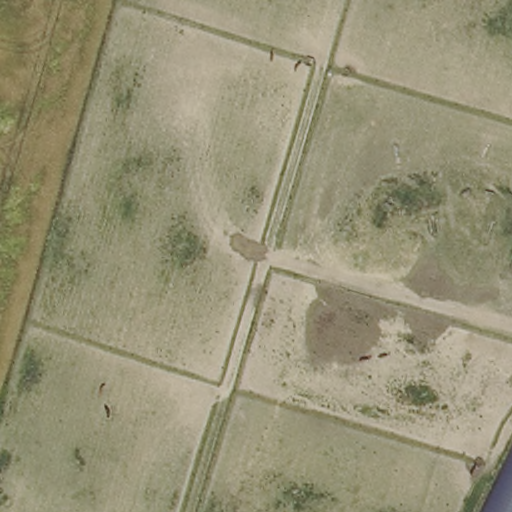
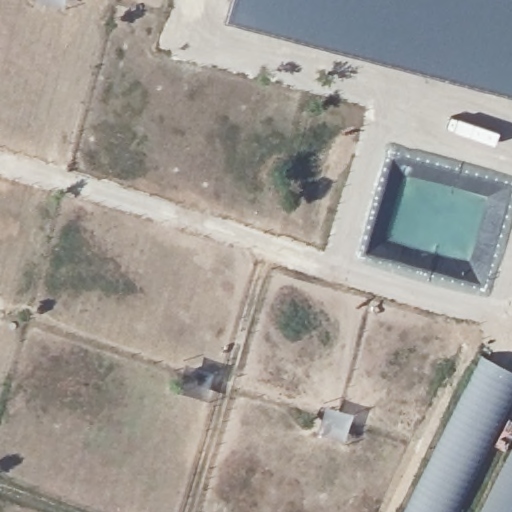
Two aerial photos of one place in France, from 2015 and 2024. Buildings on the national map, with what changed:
new [(231,0),(512,0),(512,97),(449,81),(226,20),(231,0)]
new [(405,512),(482,356),(512,371),(512,406),(460,512),(405,512)]
unchanged [(479,512),(512,445),(512,512),(479,512)]

